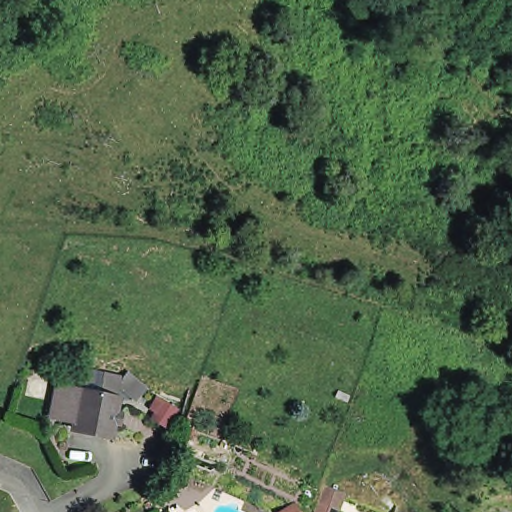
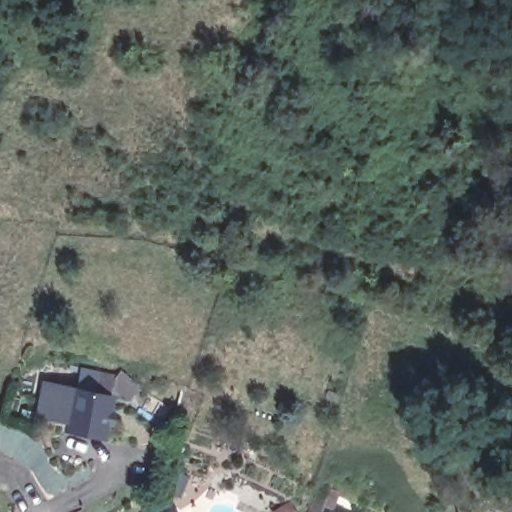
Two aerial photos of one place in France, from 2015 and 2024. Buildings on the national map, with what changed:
unchanged [(40,410),(45,378),(118,391),(111,433),(40,410)]

